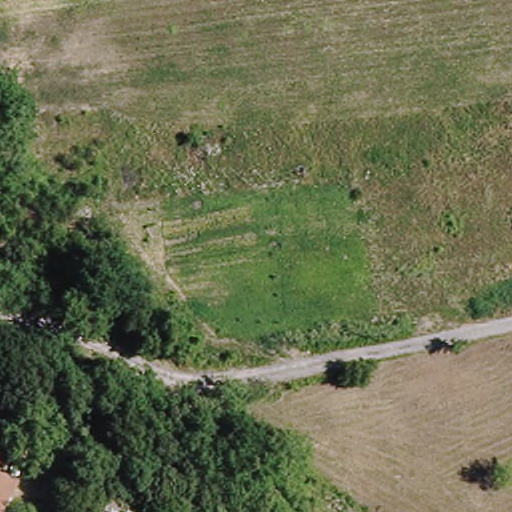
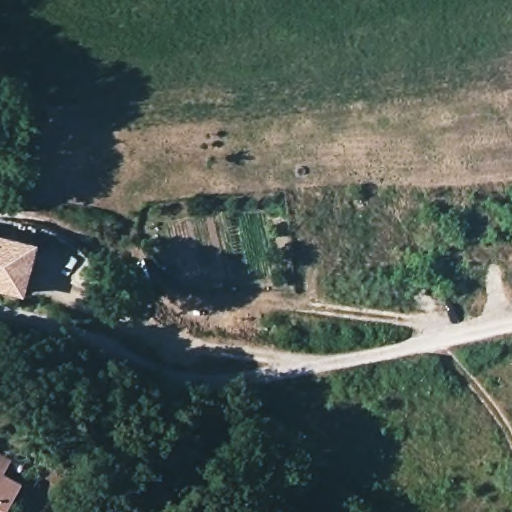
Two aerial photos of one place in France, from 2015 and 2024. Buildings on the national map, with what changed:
new [(0,291),(0,235),(35,242),(21,295),(0,291)]
unchanged [(8,461),(0,475),(0,456),(8,461)]
unchanged [(5,512),(0,512),(0,481),(18,491),(5,512)]

